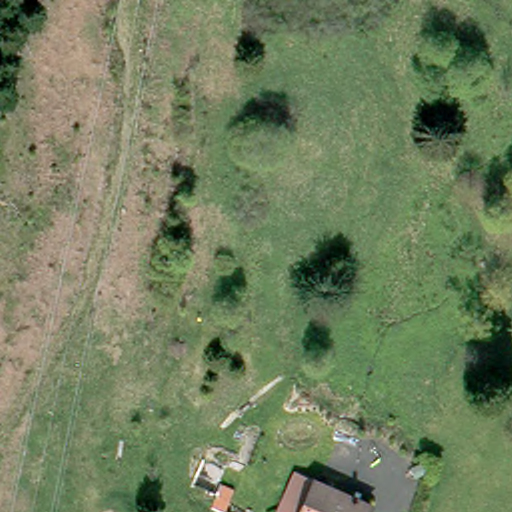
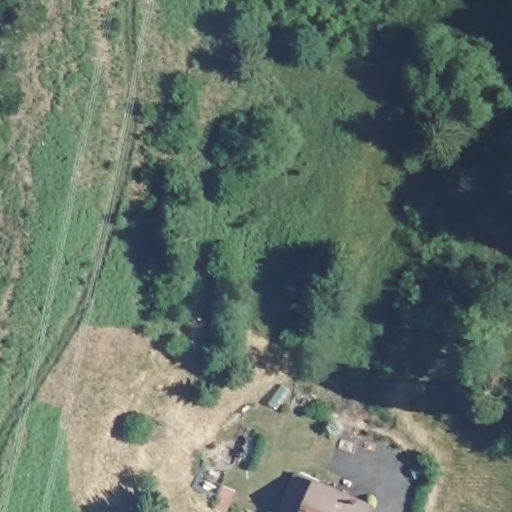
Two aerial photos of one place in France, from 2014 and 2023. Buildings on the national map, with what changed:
unchanged [(370,512),(300,512),(317,483),(370,512)]

